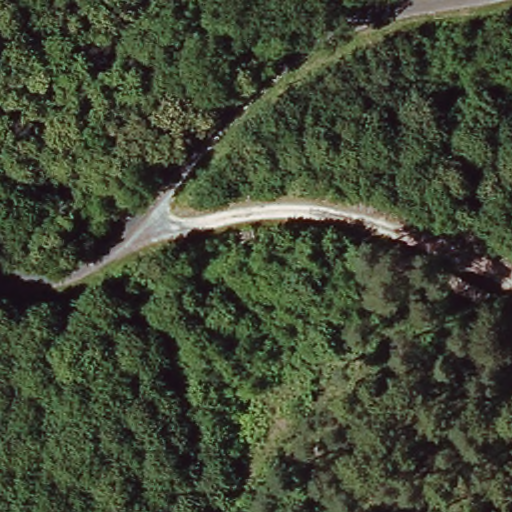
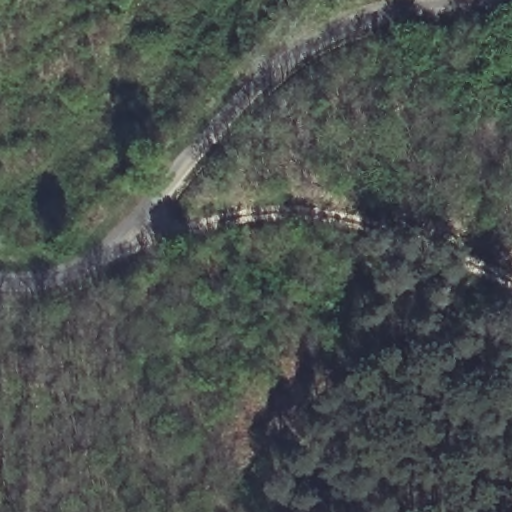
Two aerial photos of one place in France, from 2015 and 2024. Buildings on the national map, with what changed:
[]

